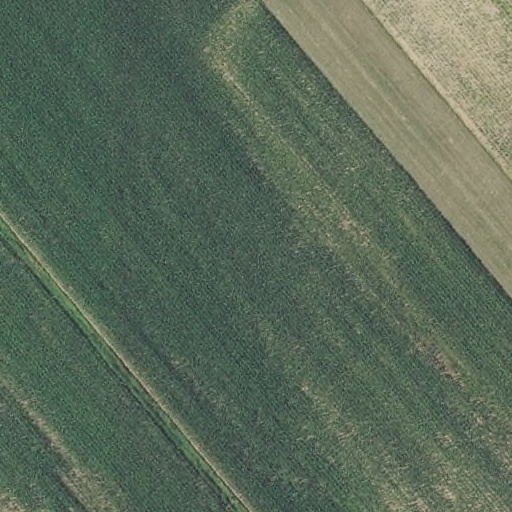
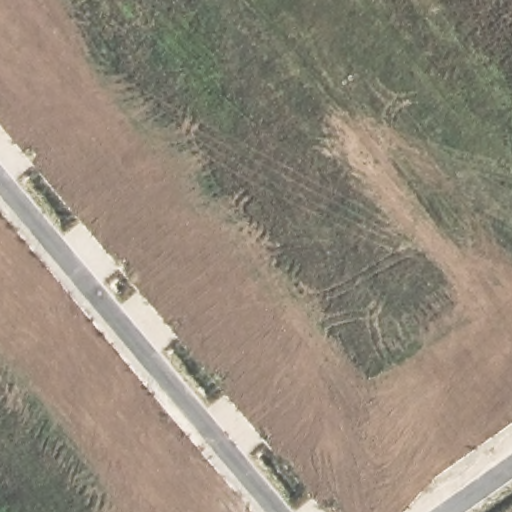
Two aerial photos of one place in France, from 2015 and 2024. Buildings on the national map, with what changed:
[]

